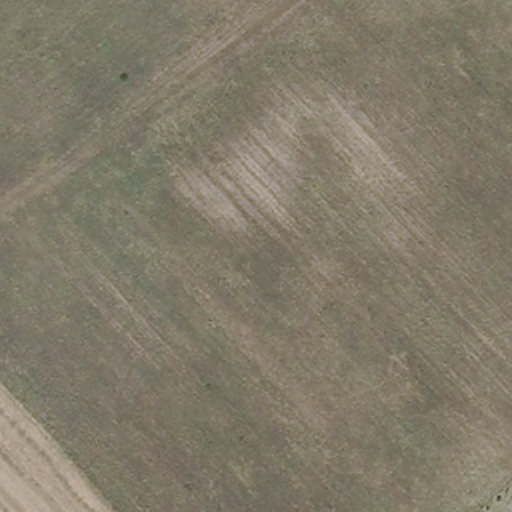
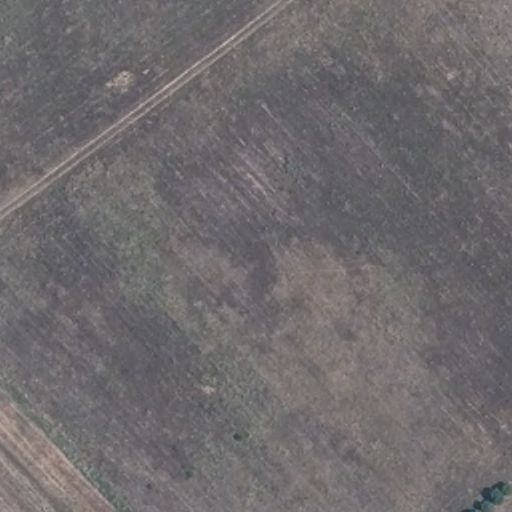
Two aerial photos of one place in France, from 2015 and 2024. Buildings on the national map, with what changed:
[]

